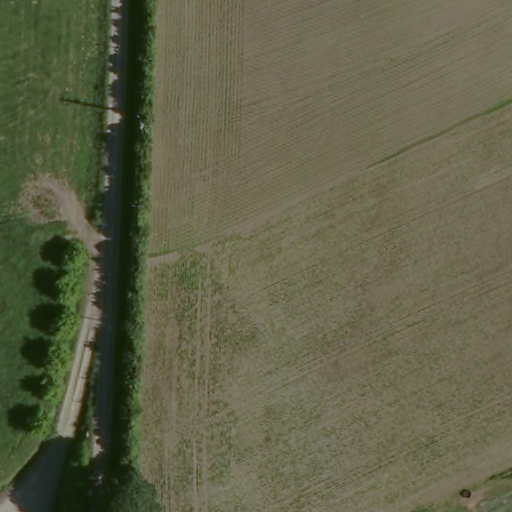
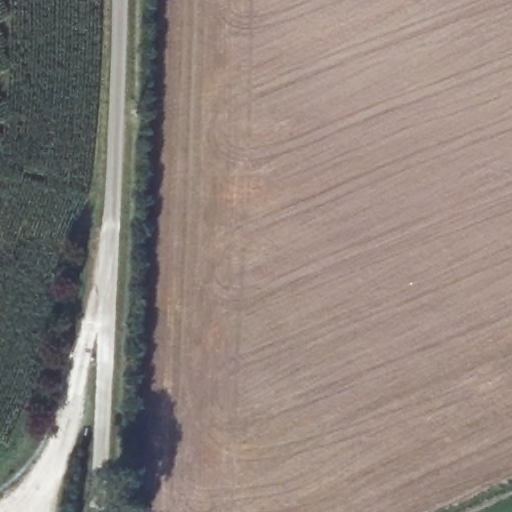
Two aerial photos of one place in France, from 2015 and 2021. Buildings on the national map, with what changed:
[]

